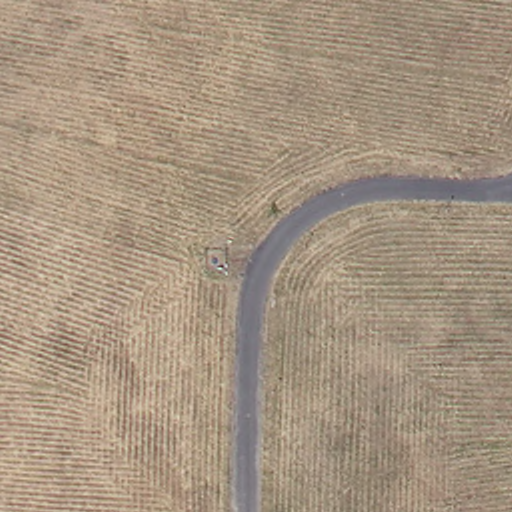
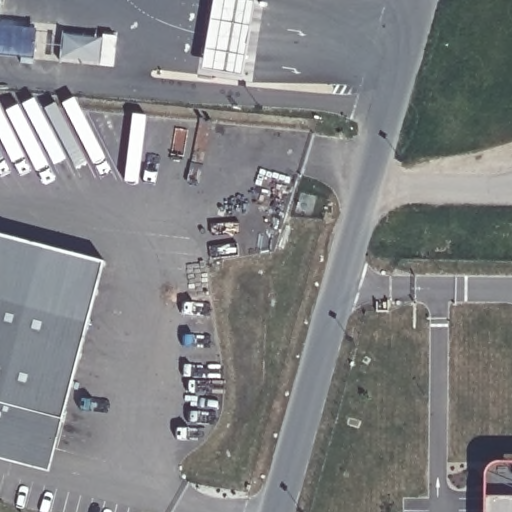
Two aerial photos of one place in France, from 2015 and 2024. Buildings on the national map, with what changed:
new [(244,77),(205,70),(217,0),(254,0),(257,0),(244,77)]
new [(116,37),(112,66),(63,59),(66,35),(102,39),(103,35),(116,37)]
new [(101,261),(46,473),(0,461),(0,236),(101,261)]
new [(512,466),(512,512),(486,512),(486,465),(512,466)]

